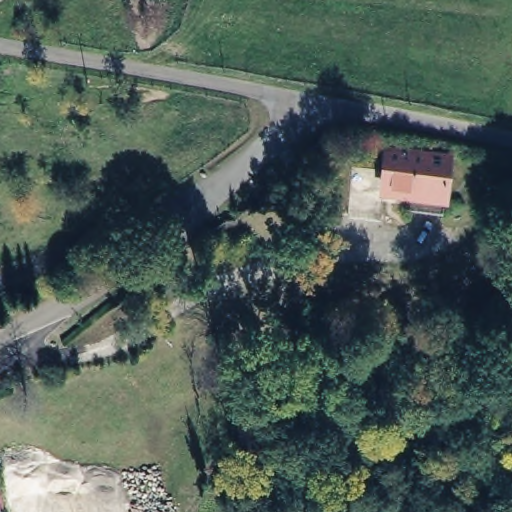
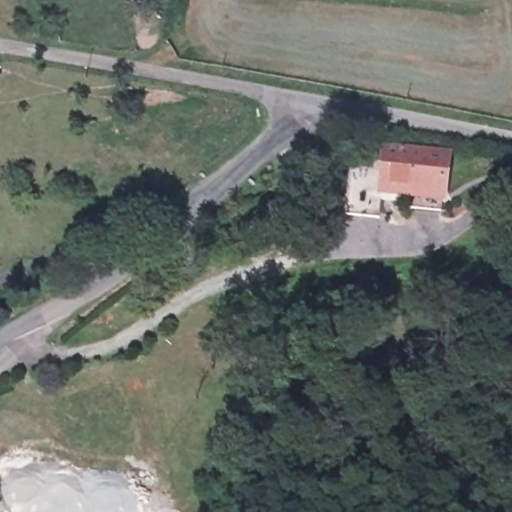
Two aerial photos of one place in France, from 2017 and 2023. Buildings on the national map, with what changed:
unchanged [(381,171),(387,135),(454,147),(444,191),(413,186),(380,180),(381,171)]

